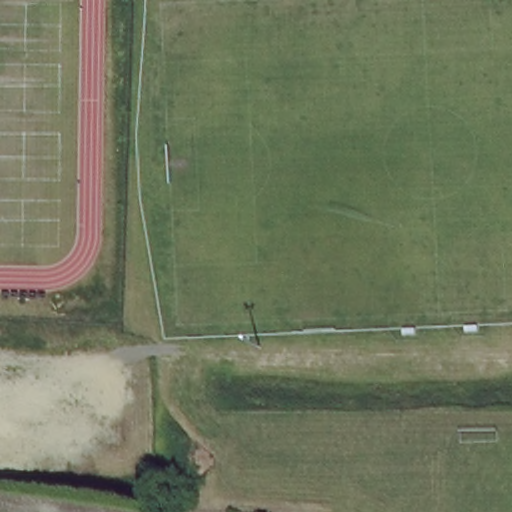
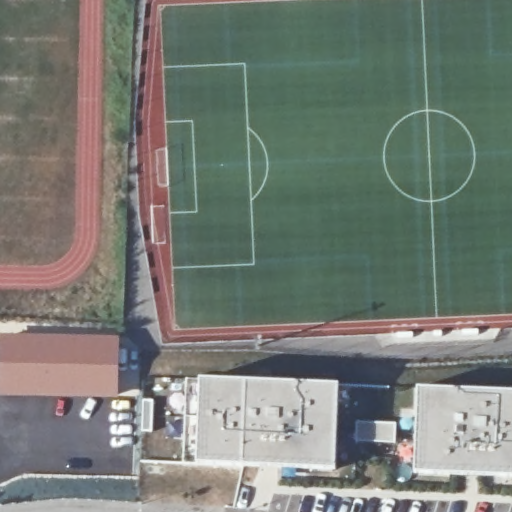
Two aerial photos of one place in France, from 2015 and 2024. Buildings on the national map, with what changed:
new [(118,397),(0,397),(0,334),(120,335),(118,397)]
new [(338,381),(334,464),(193,461),(198,375),(338,381)]
new [(512,387),(512,472),(413,468),(416,383),(512,387)]
new [(394,422),(394,442),(354,440),(355,421),(394,422)]

